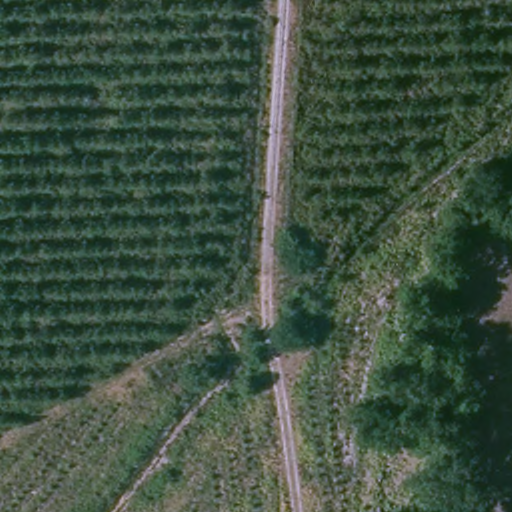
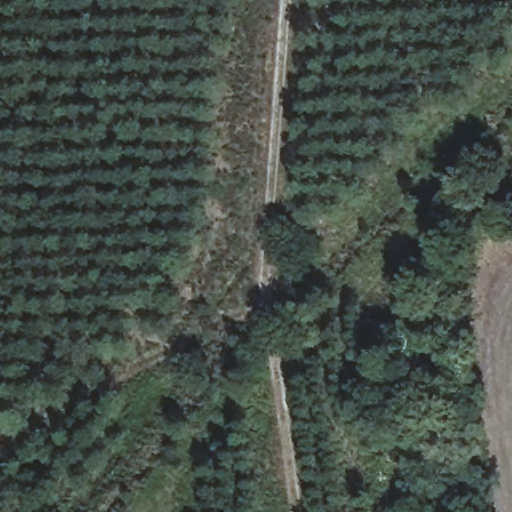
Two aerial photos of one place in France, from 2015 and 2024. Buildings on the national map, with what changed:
[]

